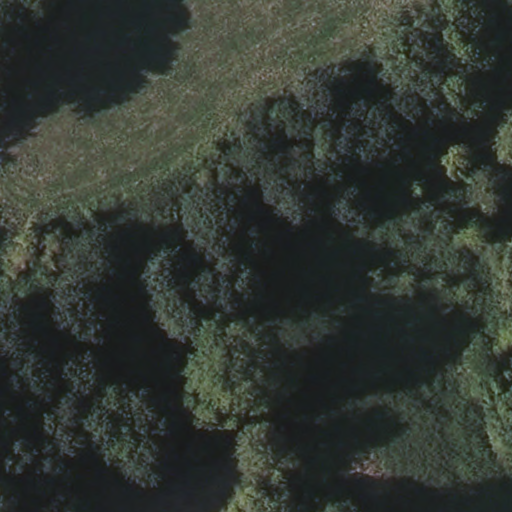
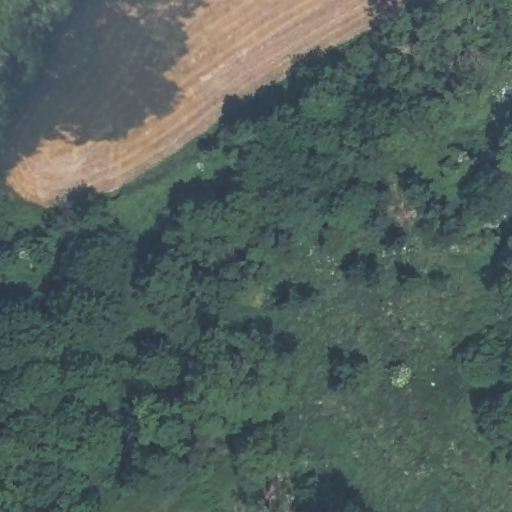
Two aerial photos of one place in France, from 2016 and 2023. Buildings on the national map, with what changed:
unchanged [(512,322),(512,359),(498,365),(484,335),(512,322)]

